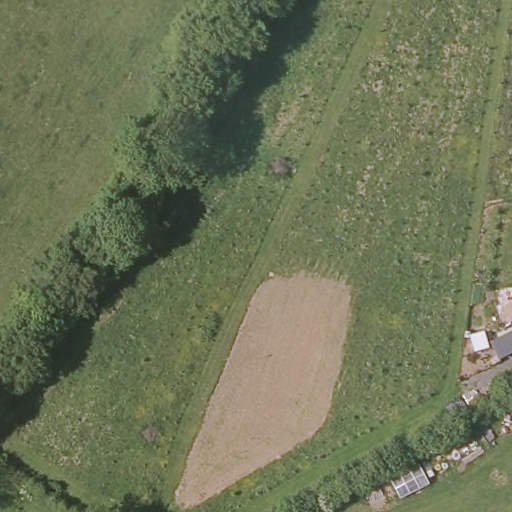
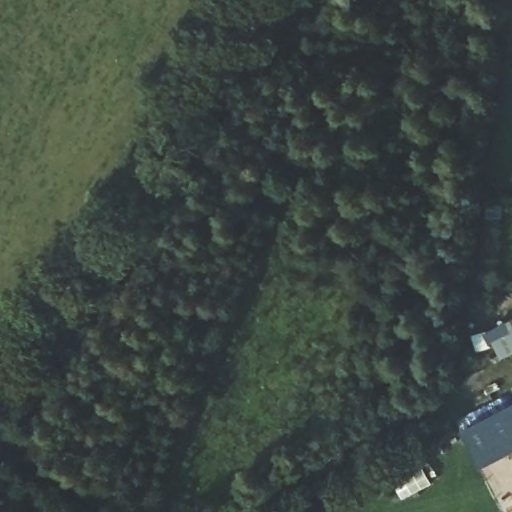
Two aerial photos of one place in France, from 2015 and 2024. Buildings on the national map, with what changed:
unchanged [(494,344),(512,335),(512,356),(501,361),(494,344)]
new [(462,433),(512,407),(512,452),(481,468),(462,433)]

